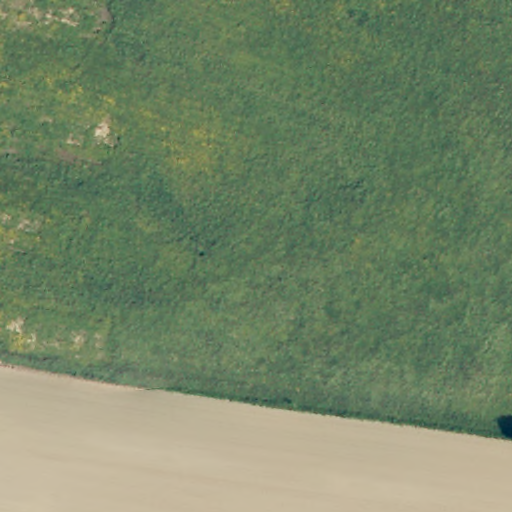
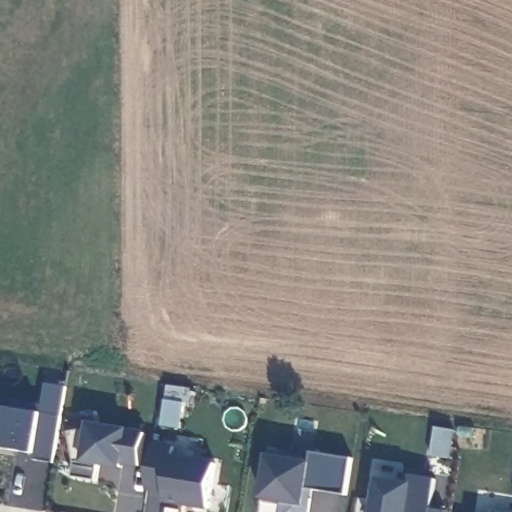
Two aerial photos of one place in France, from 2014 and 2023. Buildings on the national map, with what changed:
new [(56,462),(37,458),(39,454),(3,448),(0,447),(0,405),(8,407),(17,409),(18,402),(45,407),(49,384),(71,388),(56,462)]
new [(73,433),(92,429),(93,423),(131,428),(149,432),(143,467),(126,463),(125,468),(85,462),(79,463),(73,433)]
new [(210,510),(166,504),(167,493),(150,490),(157,442),(178,446),(176,457),(216,463),(210,510)]
new [(317,490),(313,512),(285,512),(288,503),(264,499),(272,453),(314,460),(315,453),(353,458),(348,495),(317,490)]
new [(448,511),(448,512),(375,512),(382,478),(405,481),(405,474),(440,479),(434,509),(448,511)]
new [(500,512),(493,512),(493,511),(500,512)]

